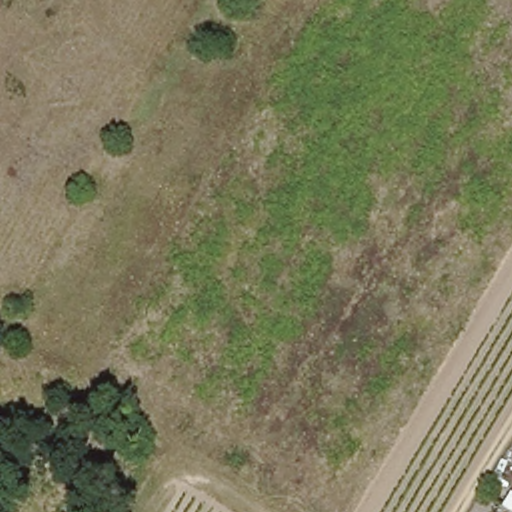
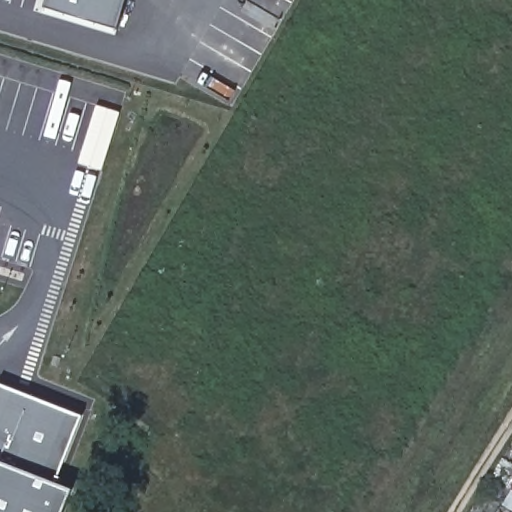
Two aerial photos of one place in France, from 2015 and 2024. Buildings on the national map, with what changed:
new [(44,5),(45,0),(125,0),(117,27),(44,5)]
new [(52,482),(69,489),(59,512),(0,512),(0,383),(80,415),(52,482)]

